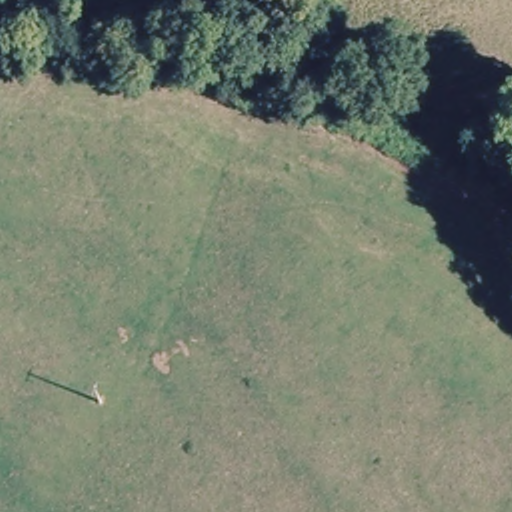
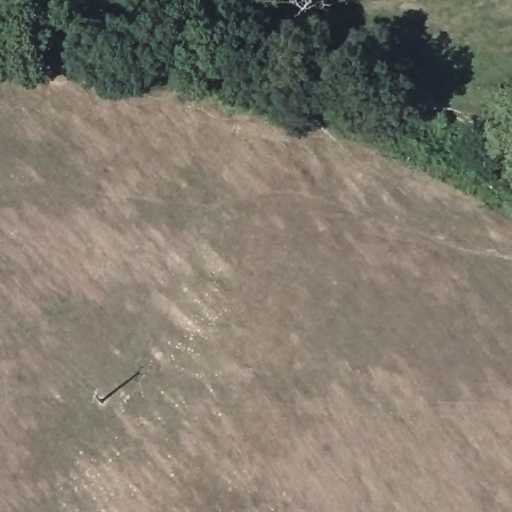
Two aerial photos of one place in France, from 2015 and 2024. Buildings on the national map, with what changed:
[]

